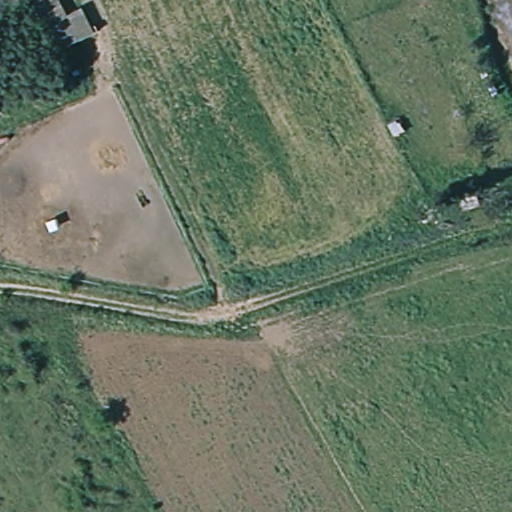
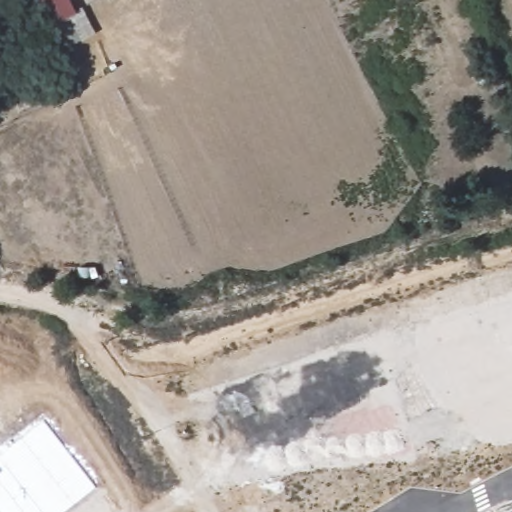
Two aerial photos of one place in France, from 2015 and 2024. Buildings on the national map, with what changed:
unchanged [(81,41),(57,56),(27,0),(29,0),(59,0),(67,16),(80,6),(93,34),(81,41)]
new [(43,420),(96,487),(64,512),(0,512),(0,453),(43,420)]

